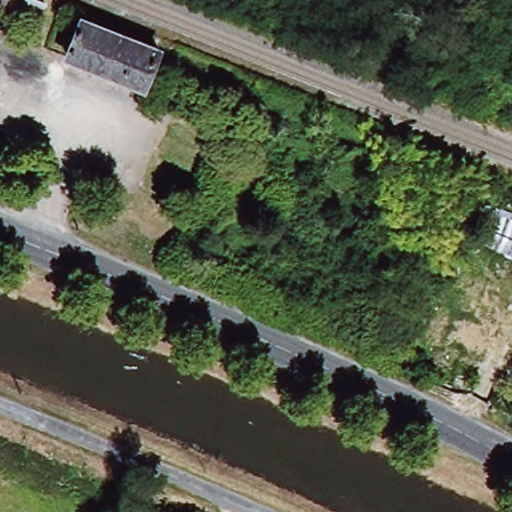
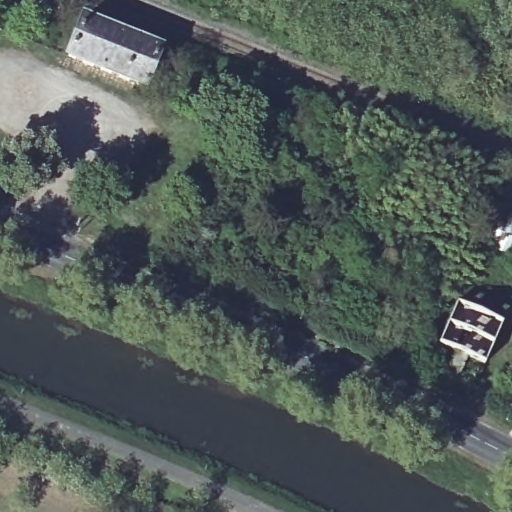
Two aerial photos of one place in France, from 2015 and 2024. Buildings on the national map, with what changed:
unchanged [(1,8),(0,7),(0,0),(5,0),(1,8)]
unchanged [(20,8),(24,0),(34,0),(41,3),(37,15),(20,8)]
unchanged [(75,61),(92,22),(167,53),(152,91),(75,61)]
unchanged [(487,242),(498,216),(512,221),(512,252),(487,242)]
new [(455,304),(500,323),(483,363),(439,342),(455,304)]
demolished [(445,347),(461,308),(505,327),(490,365),(445,347)]

